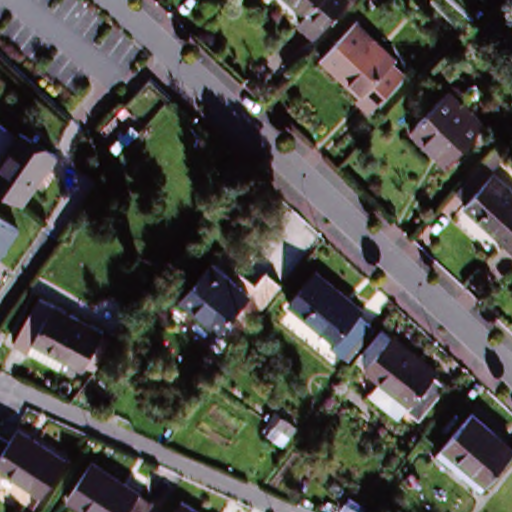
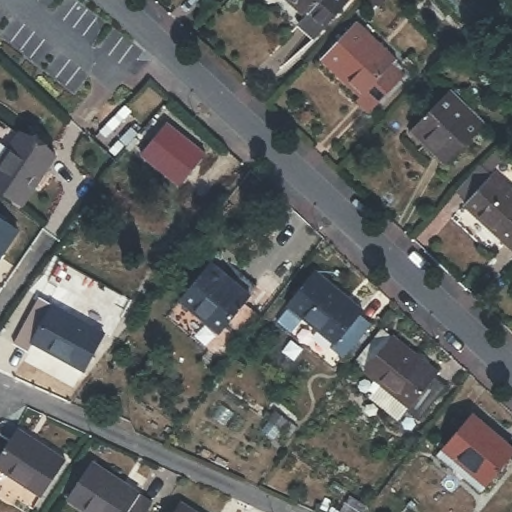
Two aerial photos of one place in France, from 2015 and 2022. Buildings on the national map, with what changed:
unchanged [(346,0),(316,33),(302,20),(306,15),(289,0),(345,0),(346,0)]
unchanged [(322,63),(356,24),(395,59),(390,63),(403,75),(367,115),(355,103),(359,97),(322,63)]
unchanged [(412,129),(450,88),(483,119),(447,160),(412,129)]
new [(202,148),(202,157),(180,185),(140,154),(166,121),(202,148)]
unchanged [(0,155),(25,130),(62,167),(24,206),(0,182),(0,155)]
unchanged [(472,207),(462,198),(485,172),(495,180),(512,196),(512,247),(467,212),(472,207)]
unchanged [(0,254),(0,223),(16,233),(0,254)]
unchanged [(266,291),(249,315),(234,304),(214,331),(173,300),(204,263),(243,292),(251,280),(266,291)]
unchanged [(376,320),(350,359),(337,350),(341,344),(295,311),(322,273),(368,307),(365,312),(376,320)]
unchanged [(28,348),(17,341),(40,295),(103,327),(85,362),(67,353),(61,365),(28,348)]
unchanged [(438,371),(451,382),(421,420),(408,411),(412,405),(368,371),(357,363),(388,324),(398,332),(442,367),(438,371)]
unchanged [(435,461),(443,450),(476,415),(512,446),(512,460),(487,488),(479,498),(435,461)]
unchanged [(22,444),(31,439),(61,476),(32,500),(0,468),(0,443),(14,433),(22,444)]
unchanged [(92,512),(70,499),(90,463),(152,498),(144,512),(92,512)]
unchanged [(194,512),(173,512),(178,503),(194,512)]

